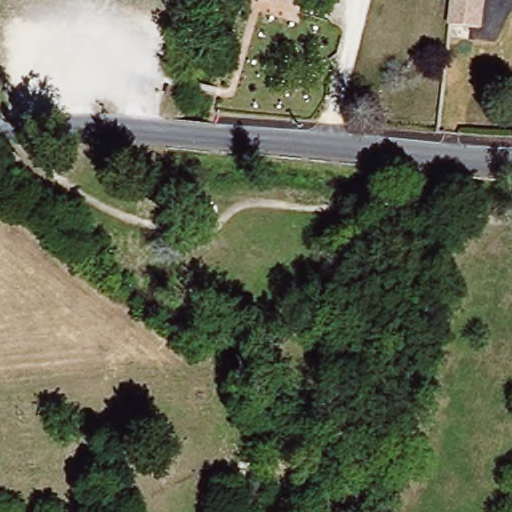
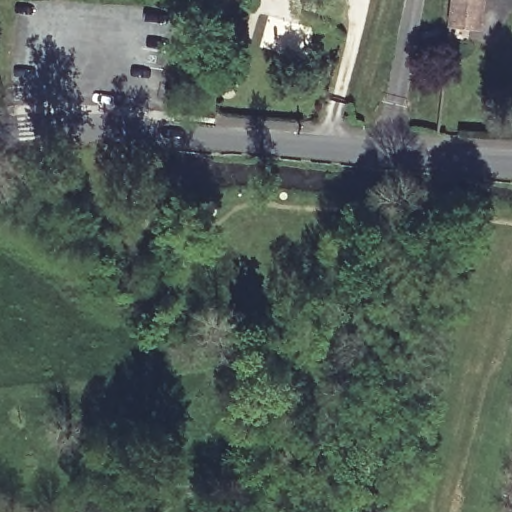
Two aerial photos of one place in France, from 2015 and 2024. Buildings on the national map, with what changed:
unchanged [(482,30),(447,25),(450,0),(486,0),(482,30)]

